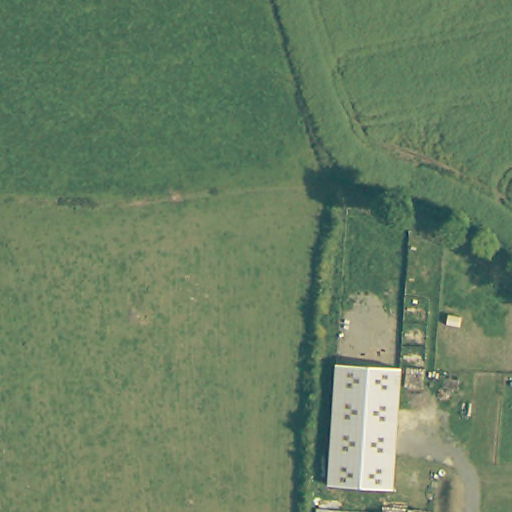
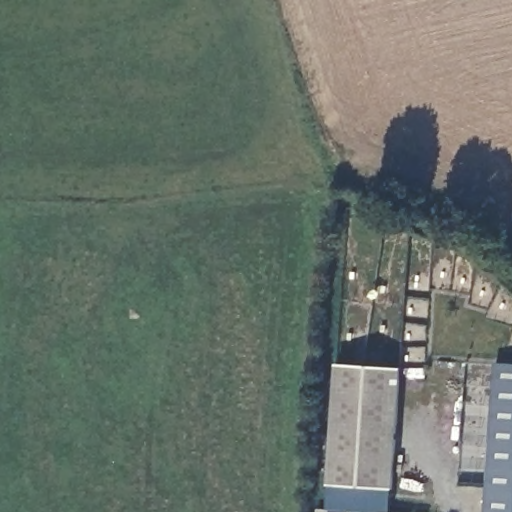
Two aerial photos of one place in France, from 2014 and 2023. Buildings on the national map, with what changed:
unchanged [(402,368),(393,490),(328,485),(337,363),(402,368)]
new [(485,512),(495,364),(512,365),(512,512),(485,512)]
unchanged [(316,512),(317,508),(330,510),(329,512),(316,512)]

